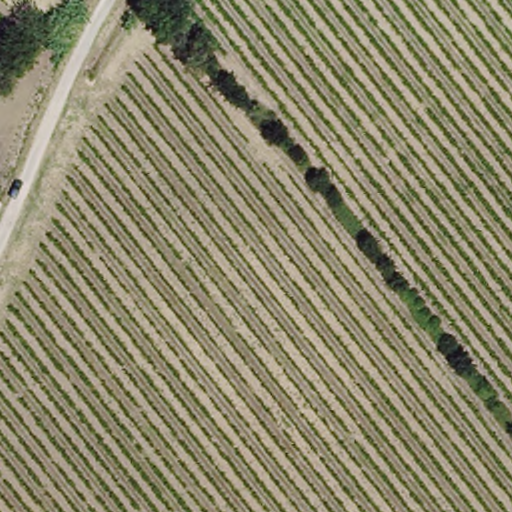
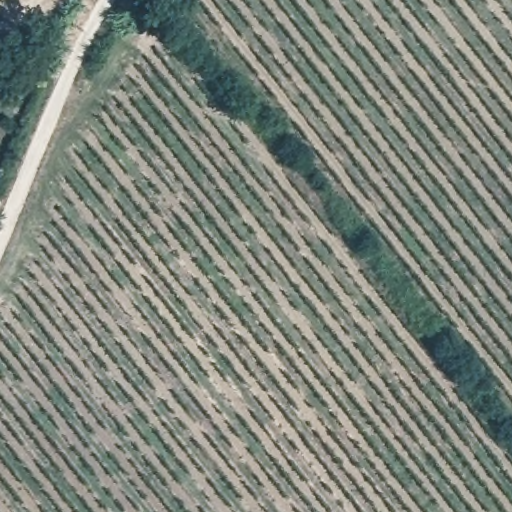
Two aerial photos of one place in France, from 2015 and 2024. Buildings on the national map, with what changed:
[]

